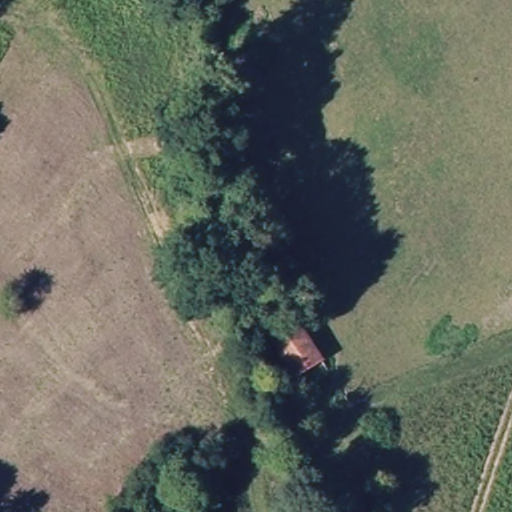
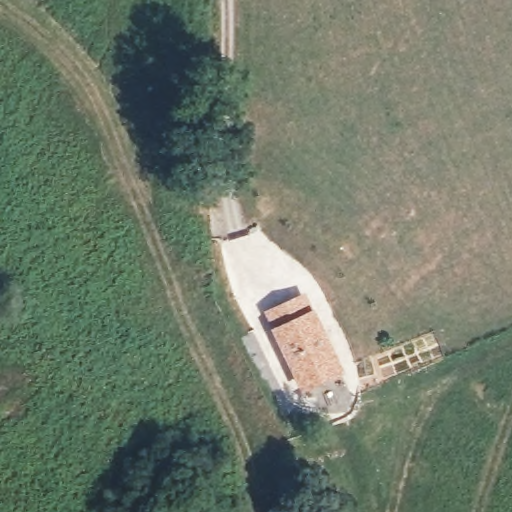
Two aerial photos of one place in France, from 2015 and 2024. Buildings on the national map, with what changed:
new [(315,307),(346,371),(301,393),(272,327),(265,311),(305,292),(315,307)]
demolished [(331,355),(302,374),(276,330),(299,312),(331,355)]

